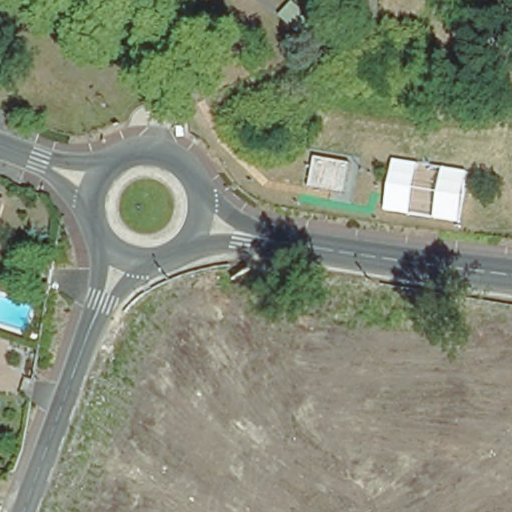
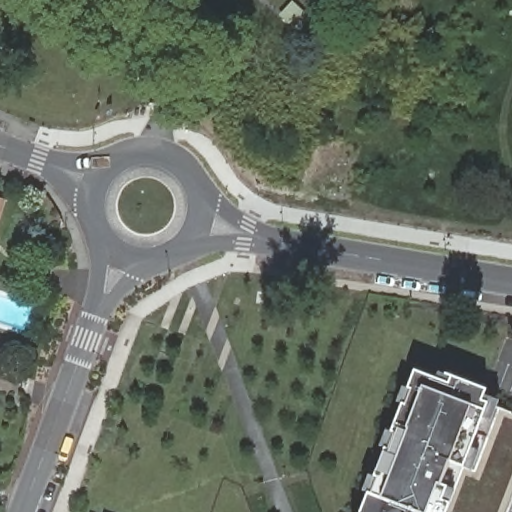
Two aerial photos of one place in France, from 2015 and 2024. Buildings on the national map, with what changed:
demolished [(452,70),(448,82),(433,77),(438,64),(452,70)]
unchanged [(9,203),(0,233),(0,200),(9,203)]
new [(415,372),(447,384),(450,376),(492,393),(487,403),(446,512),(361,512),(415,372)]
new [(487,403),(512,413),(512,501),(508,512),(446,512),(487,403)]

